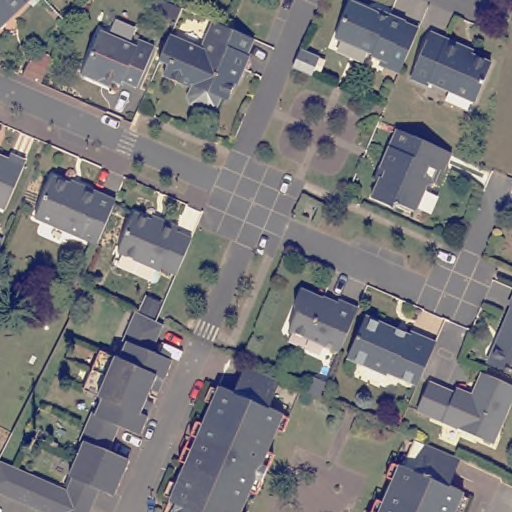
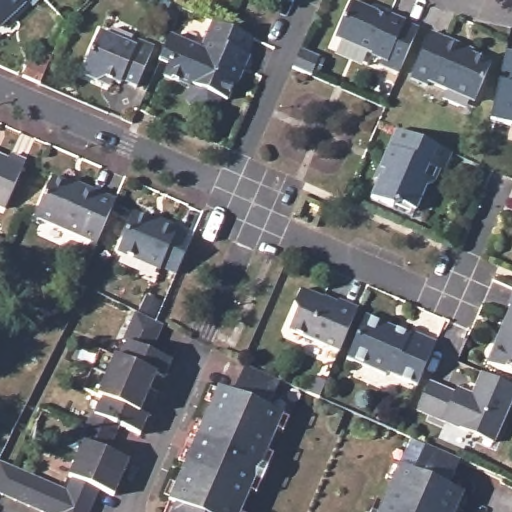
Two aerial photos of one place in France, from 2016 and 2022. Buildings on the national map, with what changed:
unchanged [(11,23),(0,33),(0,0),(35,0),(11,23)]
unchanged [(382,64),(366,57),(367,55),(331,40),(346,5),(371,16),(373,11),(383,17),(399,24),(398,25),(412,31),(404,49),(392,77),(379,70),(382,64)]
unchanged [(249,56),(252,58),(244,74),(238,72),(236,77),(239,80),(230,101),(227,99),(221,111),(214,113),(195,105),(193,96),(195,90),(196,87),(192,84),(202,59),(200,57),(200,56),(215,24),(232,31),(255,41),(249,56)]
unchanged [(472,101),(428,83),(427,85),(411,77),(432,30),(463,44),(472,48),(471,52),(490,61),(472,101)]
unchanged [(76,74),(94,33),(129,49),(133,42),(148,49),(131,86),(118,81),(116,85),(110,82),(106,87),(93,81),(76,74)]
unchanged [(166,44),(200,57),(202,59),(192,84),(196,87),(195,90),(162,77),(158,65),(166,44)]
unchanged [(315,57),(308,75),(289,67),(297,49),(315,57)]
new [(500,82),(503,82),(508,51),(512,52),(512,126),(489,121),(500,82)]
unchanged [(21,62),(42,70),(36,85),(14,76),(21,62)]
unchanged [(380,170),(397,130),(452,153),(444,172),(440,171),(434,184),(427,184),(416,209),(401,202),(394,208),(373,199),(380,182),(376,180),(380,170)]
unchanged [(5,154),(21,160),(0,208),(0,159),(2,160),(5,154)]
unchanged [(31,220),(49,180),(75,191),(76,189),(111,202),(93,244),(31,220)]
unchanged [(156,270),(113,252),(131,211),(144,217),(145,212),(156,217),(173,225),(171,231),(188,237),(173,274),(157,267),(156,270)]
unchanged [(293,311),(291,304),(298,288),(318,297),(333,303),(334,300),(354,307),(336,351),(286,330),(293,311)]
unchanged [(156,351),(179,361),(165,392),(147,384),(145,390),(99,367),(107,347),(126,355),(134,337),(129,335),(142,307),(163,317),(170,321),(156,351)]
unchanged [(381,375),(380,378),(343,360),(362,316),(403,335),(405,331),(432,342),(413,388),(381,375)]
unchanged [(490,364),(512,316),(512,374),(490,364)]
unchanged [(244,503),(183,473),(204,423),(221,383),(235,390),(248,361),(281,375),(269,405),(283,411),(291,413),(285,428),(276,426),(268,446),(276,450),(272,459),(258,490),(251,486),(244,503)]
unchanged [(98,411),(101,412),(109,394),(91,386),(99,367),(145,390),(143,395),(160,402),(147,433),(129,425),(123,440),(92,425),(98,411)]
unchanged [(491,443),(415,411),(426,385),(450,395),(451,391),(470,398),(481,373),(512,387),(512,395),(491,443)]
unchanged [(311,379),(323,383),(317,398),(305,393),(311,379)]
unchanged [(121,493),(106,487),(95,512),(58,512),(9,490),(0,486),(0,467),(5,457),(21,463),(74,486),(78,475),(75,473),(90,439),(87,437),(92,425),(123,440),(118,450),(136,458),(121,493)]
unchanged [(378,511),(385,495),(392,497),(401,477),(394,474),(400,458),(408,461),(423,468),(435,440),(472,456),(460,483),(473,490),(463,512),(378,512),(378,511)]
unchanged [(249,511),(249,512),(166,512),(183,473),(244,503),(242,507),(249,511)]

